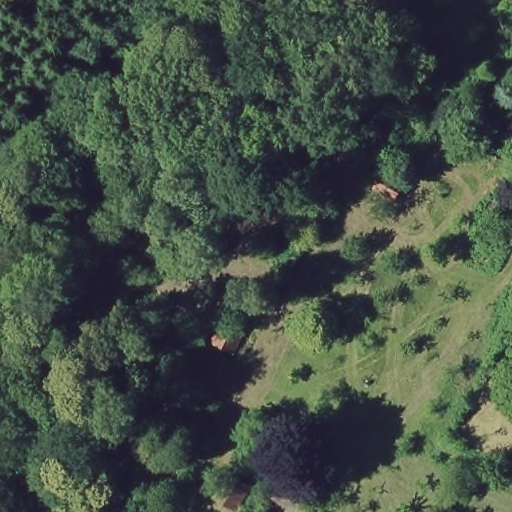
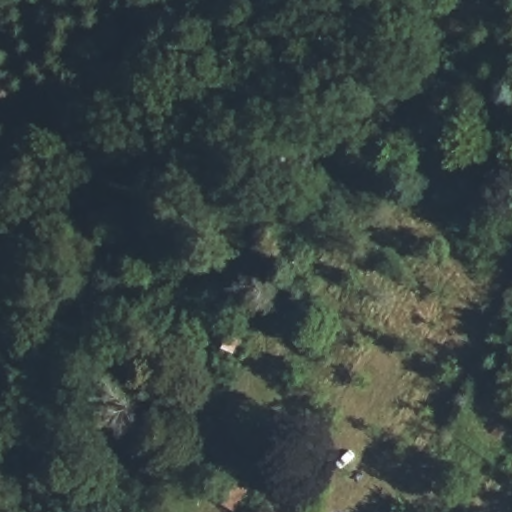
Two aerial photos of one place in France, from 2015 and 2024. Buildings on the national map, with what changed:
unchanged [(242,512),(237,512),(216,498),(232,470),(258,487),(242,512)]

